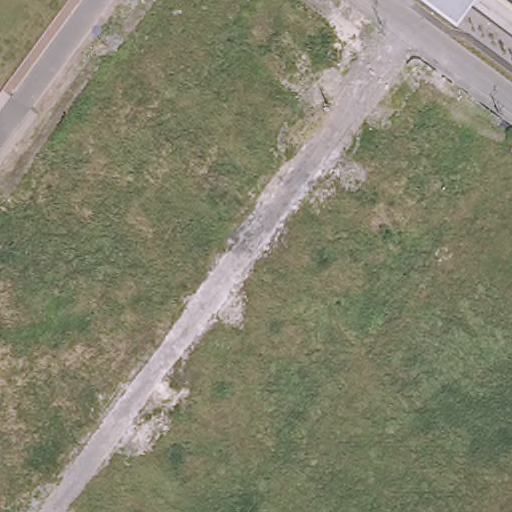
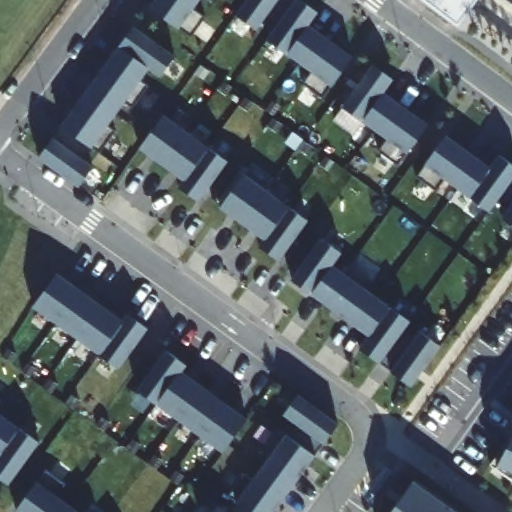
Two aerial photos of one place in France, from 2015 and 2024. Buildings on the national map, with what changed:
new [(156,0),(201,0),(193,11),(202,18),(192,34),(182,27),(150,7),(156,0)]
new [(304,83),(312,70),(268,38),(273,28),(264,20),(257,29),(238,14),(248,0),(302,0),(320,13),(308,28),(351,58),(332,85),(325,96),(304,83)]
demolished [(350,41),(335,29),(317,54),(308,47),(342,0),(381,29),(378,33),(342,83),(327,72),(350,41)]
unchanged [(423,0),(476,0),(457,25),(423,0)]
new [(38,158),(134,28),(175,56),(160,76),(150,70),(142,81),(148,86),(132,105),(127,101),(110,125),(115,130),(100,149),(93,148),(83,160),(92,169),(78,187),(38,158)]
new [(380,151),(387,138),(345,107),(373,65),(392,79),(385,94),(427,125),(407,153),(397,164),(380,151)]
new [(200,200),(179,188),(185,180),(141,148),(166,116),(228,161),(200,200)]
new [(508,209),(497,202),(490,212),(445,180),(436,190),(418,177),(427,165),(447,135),(490,167),(500,156),(512,165),(512,224),(503,217),(508,209)]
new [(260,248),(267,239),(222,208),(245,175),(307,221),(280,261),(260,248)]
new [(412,386),(360,349),(370,337),(293,279),(323,238),(341,253),(334,267),(410,320),(400,331),(413,341),(420,332),(440,348),(412,386)]
new [(57,273),(123,322),(128,315),(147,328),(118,368),(32,307),(57,273)]
new [(137,387),(166,349),(187,365),(183,372),(247,419),(222,452),(137,387)]
new [(295,423),(285,414),(298,395),(338,423),(275,512),(229,512),(295,423)]
new [(0,476),(0,414),(37,442),(9,481),(0,476)]
new [(512,432),(512,480),(488,464),(512,432)]
new [(17,509),(41,479),(47,471),(63,483),(58,493),(82,512),(20,512),(17,509)]
new [(415,481),(459,512),(392,512),(415,481)]
new [(218,508),(225,512),(215,512),(218,508)]

